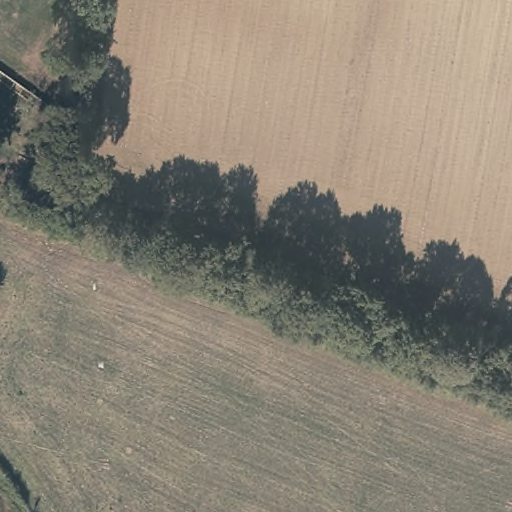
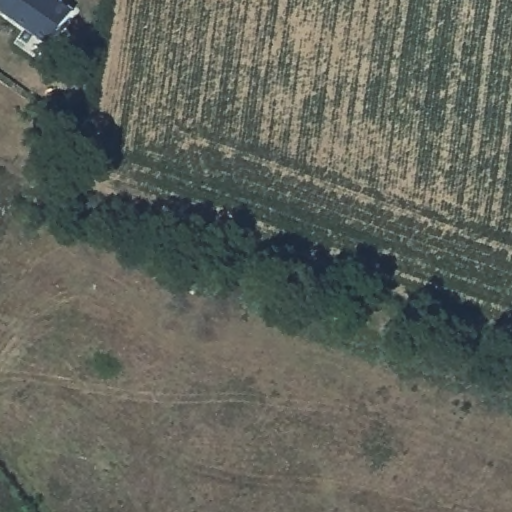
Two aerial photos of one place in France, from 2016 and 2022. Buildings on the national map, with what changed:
new [(1,3),(0,2),(0,0),(3,0),(1,3)]
new [(1,3),(3,0),(58,0),(75,11),(52,44),(0,9),(0,4),(1,3)]

